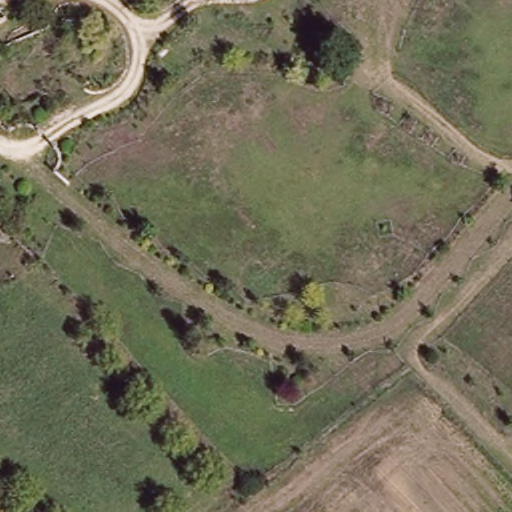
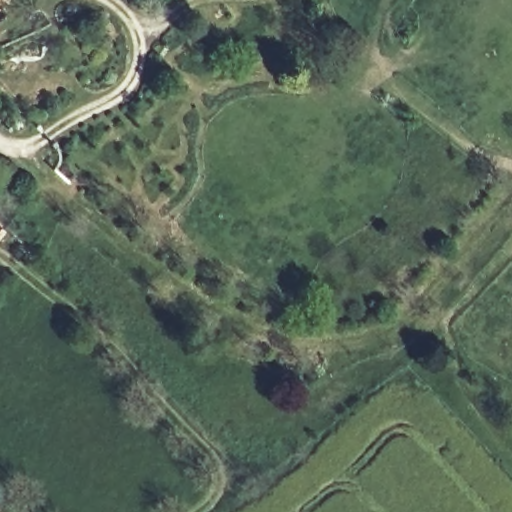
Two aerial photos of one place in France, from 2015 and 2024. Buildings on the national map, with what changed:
unchanged [(3,20),(0,22),(0,15),(3,20)]

